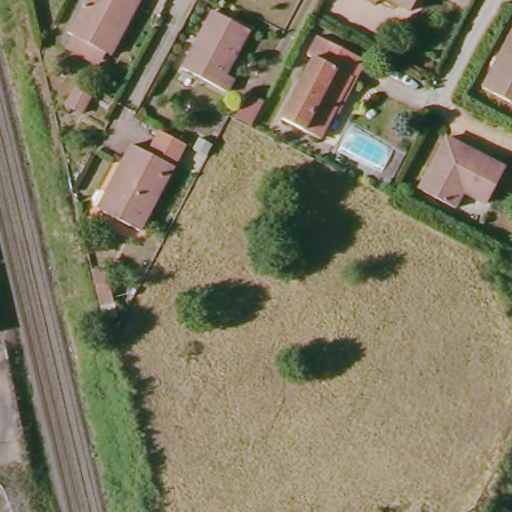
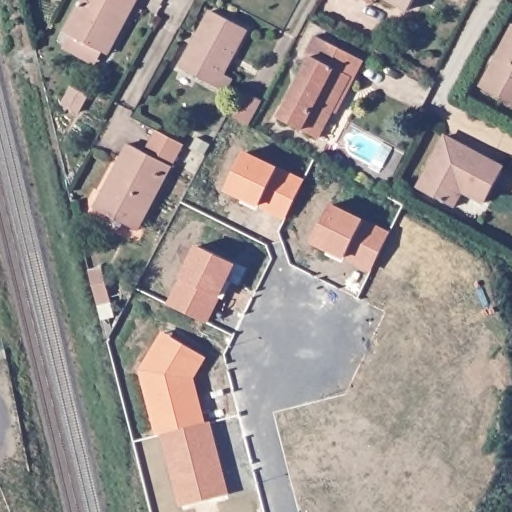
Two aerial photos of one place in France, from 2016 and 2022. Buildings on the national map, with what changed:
unchanged [(68,35),(62,31),(79,0),(129,0),(128,1),(132,2),(112,40),(105,54),(99,50),(92,64),(62,47),(68,35)]
unchanged [(379,0),(410,0),(402,14),(379,0)]
unchanged [(210,13),(244,31),(222,76),(232,82),(226,92),(182,69),(210,13)]
unchanged [(512,28),(512,103),(480,86),(512,28)]
unchanged [(313,59),(307,55),(317,37),(363,62),(355,80),(351,78),(321,137),(283,116),(313,59)]
unchanged [(252,94),(267,100),(255,123),(242,115),(252,94)]
unchanged [(81,97),(95,104),(85,123),(71,115),(81,97)]
unchanged [(110,204),(105,200),(123,164),(127,165),(135,152),(147,159),(162,132),(185,145),(138,235),(103,216),(110,204)]
unchanged [(445,140),(504,170),(487,206),(464,195),(456,210),(420,193),(445,140)]
new [(223,191),(241,155),(303,185),(285,221),(223,191)]
new [(332,203),(393,233),(375,270),(313,240),(332,203)]
new [(196,246),(233,263),(203,325),(165,307),(196,246)]
unchanged [(99,300),(113,297),(117,317),(104,321),(99,300)]
new [(202,360),(188,381),(201,429),(160,440),(155,441),(138,374),(161,335),(172,342),(197,357),(202,360)]
new [(201,429),(207,428),(225,503),(189,512),(179,512),(160,440),(201,429)]

